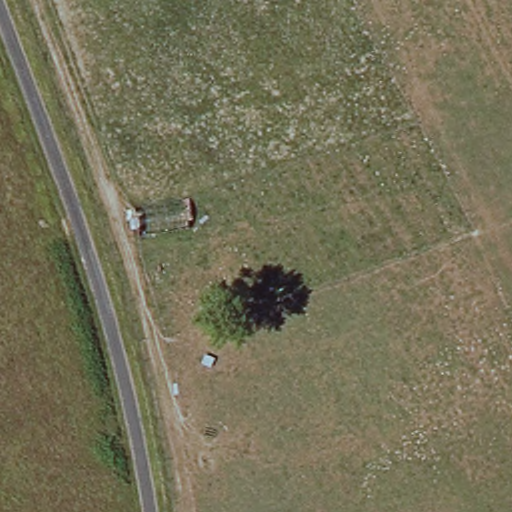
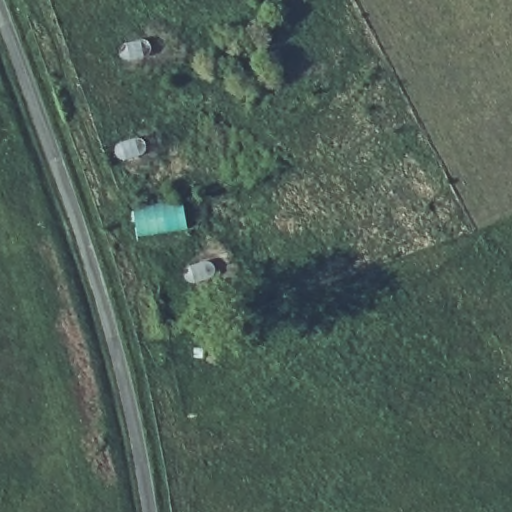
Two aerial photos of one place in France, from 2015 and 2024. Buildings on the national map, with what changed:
unchanged [(139,235),(133,208),(184,202),(190,227),(139,235)]

